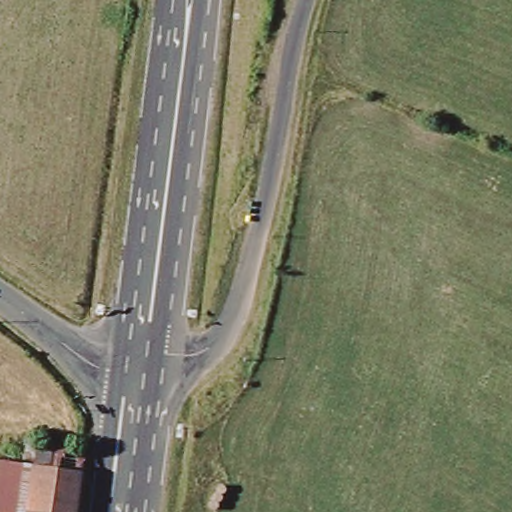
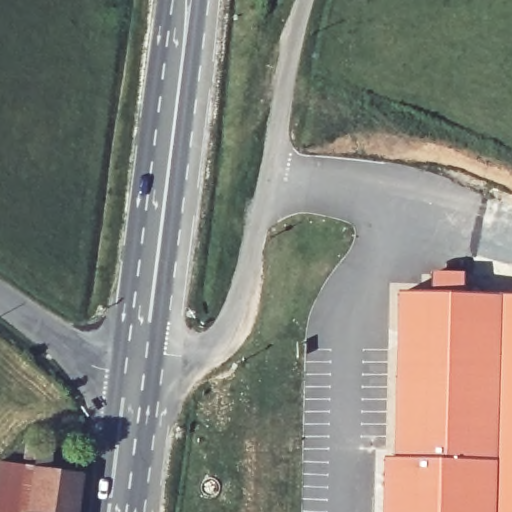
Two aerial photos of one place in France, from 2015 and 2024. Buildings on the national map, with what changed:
new [(404,290),(435,292),(435,272),(469,273),(468,293),(505,294),(503,349),(512,349),(512,407),(501,406),(497,512),(386,512),(389,457),(398,457),(404,290)]
unchanged [(61,451),(97,458),(89,512),(51,512),(59,466),(61,451)]
unchanged [(59,466),(51,512),(4,512),(12,458),(29,461),(59,466)]

